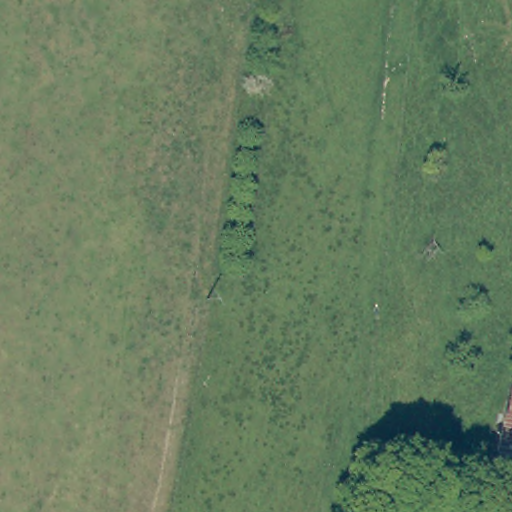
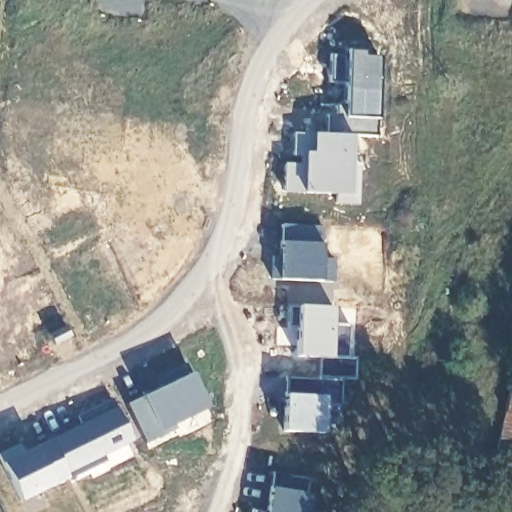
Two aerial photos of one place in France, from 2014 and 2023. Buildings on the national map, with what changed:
new [(349,135),(325,134),(326,114),(335,114),(335,104),(345,104),(346,82),(330,81),(331,53),(347,54),(347,49),(365,50),(365,55),(380,55),(376,136),(349,135)]
new [(325,134),(349,135),(348,165),(357,165),(355,204),(335,202),(335,193),(282,190),(283,164),(303,165),(303,155),(291,155),(292,132),(325,134)]
new [(321,225),(320,257),(332,258),(331,281),(270,278),(271,255),(279,255),(280,224),(321,225)]
new [(332,306),(331,322),(348,323),(347,356),(355,356),(353,378),(341,378),(315,377),(316,357),(295,355),(296,327),(286,326),(286,305),(332,306)]
new [(157,387),(153,377),(185,361),(207,407),(157,431),(160,435),(144,443),(124,403),(157,387)]
unchanged [(512,512),(497,512),(486,510),(493,481),(488,480),(512,374),(512,512)]
new [(315,377),(341,378),(340,405),(323,405),(322,432),(281,430),(284,375),(315,377)]
new [(80,423),(75,415),(110,397),(131,440),(101,454),(105,460),(67,478),(49,439),(67,430),(80,423)]
new [(18,500),(0,462),(0,452),(17,443),(21,452),(49,439),(66,476),(18,500)]
new [(308,476),(306,493),(308,494),(305,512),(250,512),(250,508),(265,510),(271,471),(308,476)]

